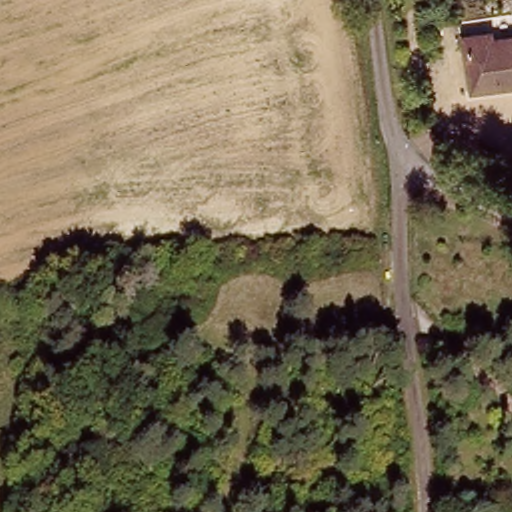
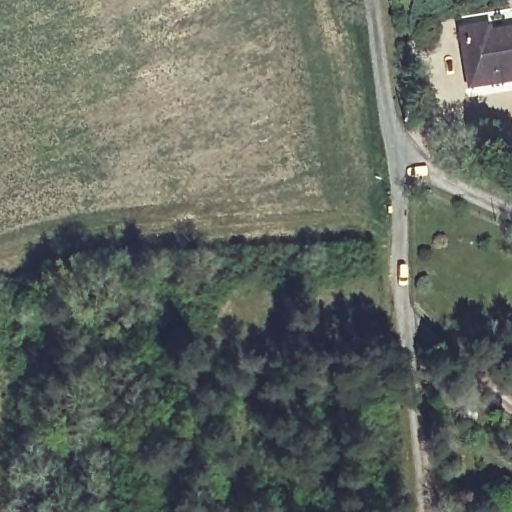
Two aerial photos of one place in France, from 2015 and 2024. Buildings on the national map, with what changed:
unchanged [(467,89),(460,30),(489,26),(490,35),(512,32),(512,84),(467,89)]

